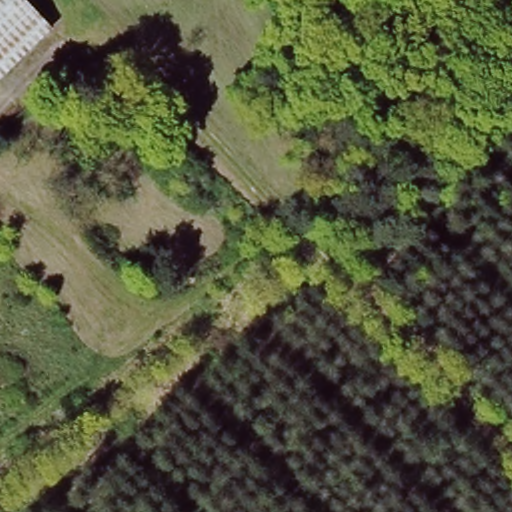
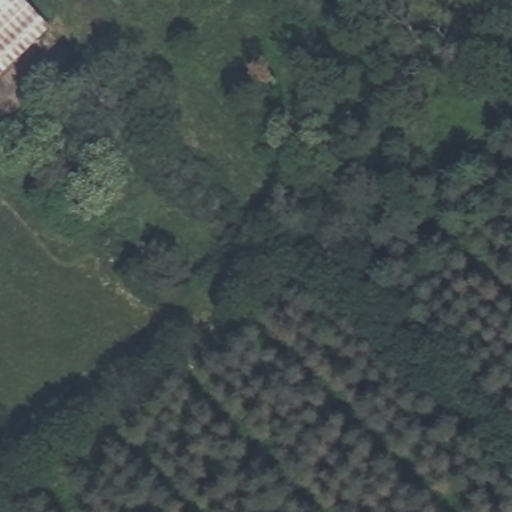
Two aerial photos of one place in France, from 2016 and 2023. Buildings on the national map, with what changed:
unchanged [(0,76),(0,0),(28,0),(52,25),(0,76)]

